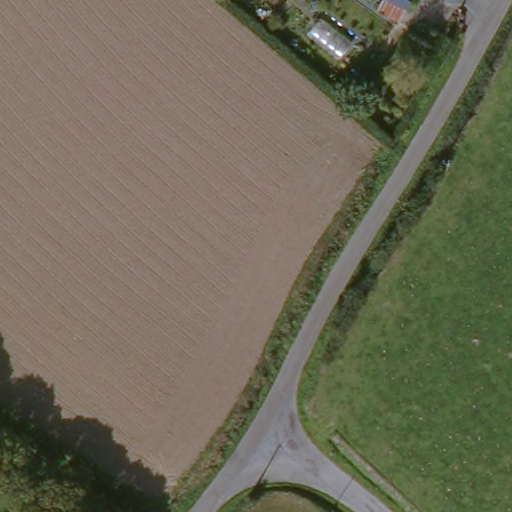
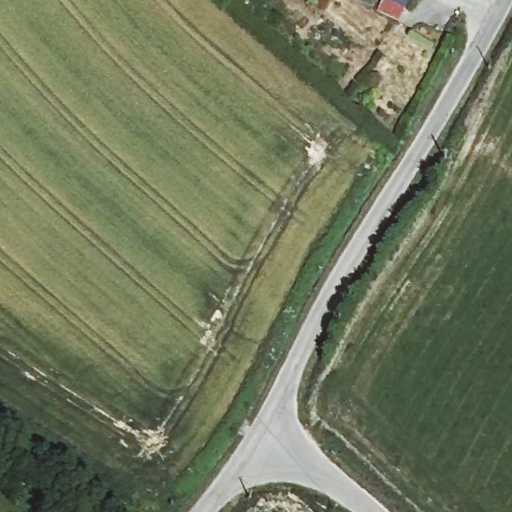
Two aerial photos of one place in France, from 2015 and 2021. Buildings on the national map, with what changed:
unchanged [(418,14),(412,25),(393,15),(399,1),(396,0),(430,0),(424,14),(418,14)]

